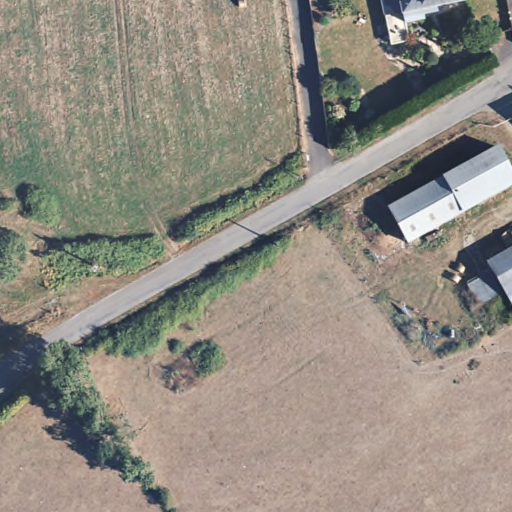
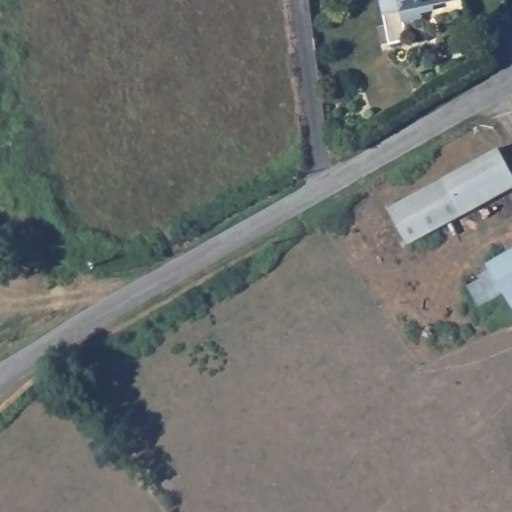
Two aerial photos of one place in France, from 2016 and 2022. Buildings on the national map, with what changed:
unchanged [(466,4),(403,18),(386,22),(381,0),(465,0),(466,4)]
unchanged [(409,247),(390,210),(393,207),(501,152),(512,171),(512,190),(416,244),(409,247)]
unchanged [(468,291),(479,285),(493,276),(490,271),(512,259),(512,311),(504,298),(492,307),(480,313),(468,291)]

